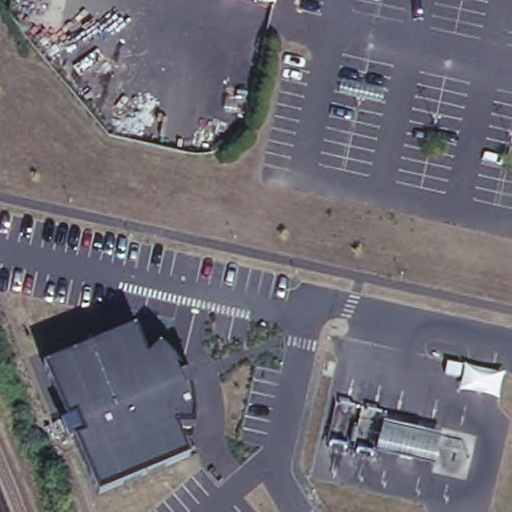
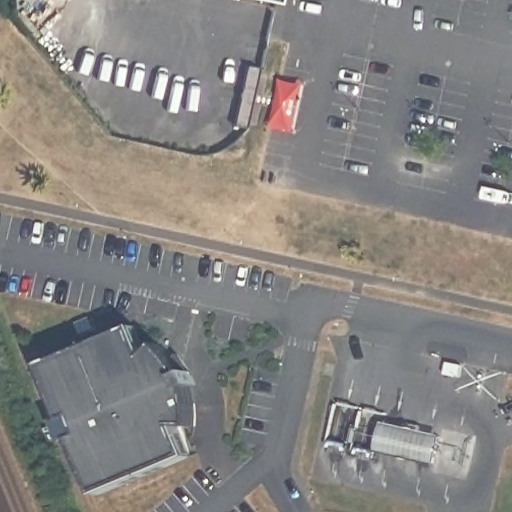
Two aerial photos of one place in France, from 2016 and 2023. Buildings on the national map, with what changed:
unchanged [(260,0),(274,0),(274,3),(260,0)]
unchanged [(147,359),(159,343),(179,366),(193,397),(193,425),(174,426),(186,456),(98,494),(46,364),(133,329),(147,359)]
unchanged [(443,436),(436,469),(372,456),(379,423),(443,436)]

